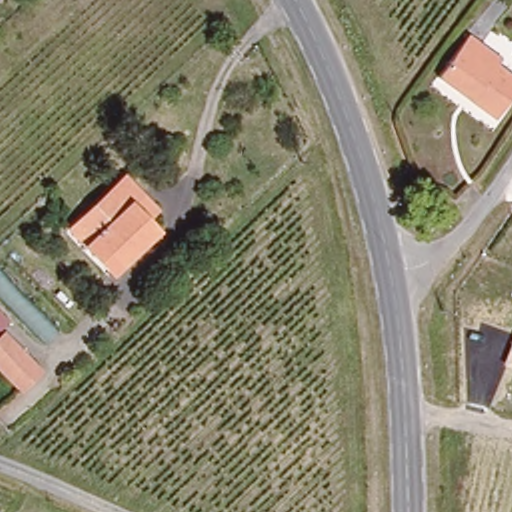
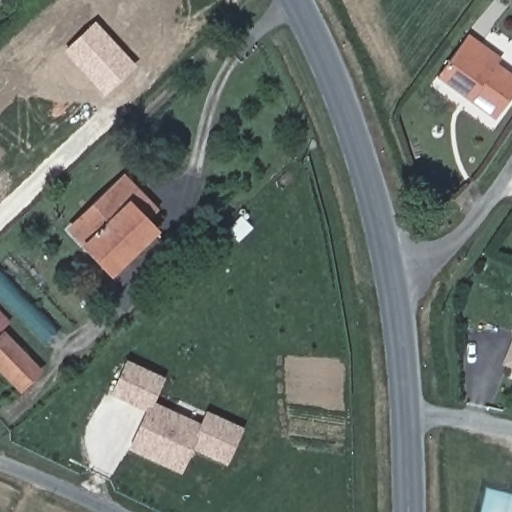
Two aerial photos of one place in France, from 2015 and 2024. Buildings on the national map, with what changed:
new [(95,21),(136,66),(105,95),(63,51),(95,21)]
unchanged [(492,120),(436,78),(466,35),(481,45),(496,56),(491,65),(512,80),(512,92),(492,120)]
unchanged [(115,177),(123,169),(152,201),(141,216),(152,227),(109,269),(67,223),(115,177)]
unchanged [(16,388),(0,371),(0,333),(36,369),(16,388)]
unchanged [(501,366),(512,335),(512,371),(501,366)]
new [(206,410),(242,427),(224,466),(191,451),(180,474),(129,450),(146,412),(111,396),(127,359),(163,376),(151,400),(200,423),(206,410)]

